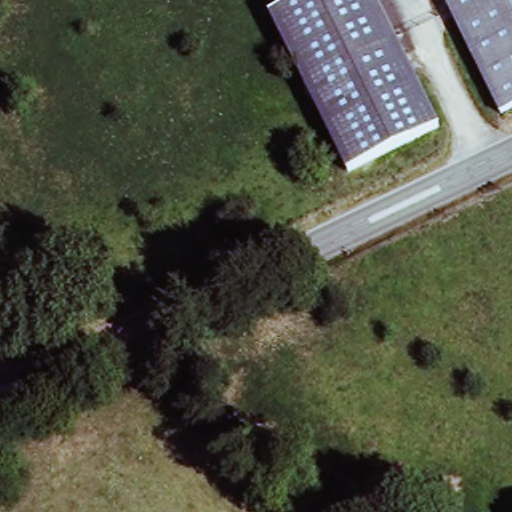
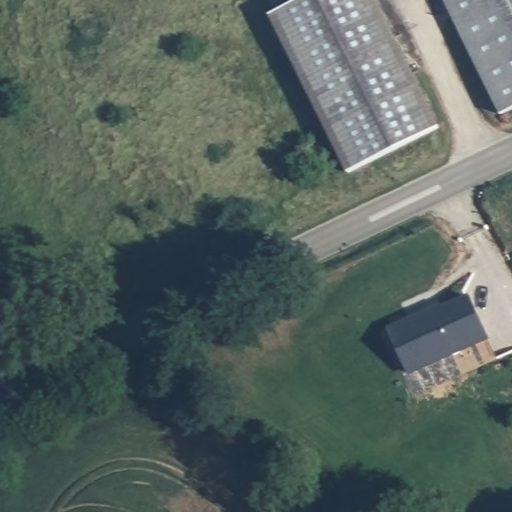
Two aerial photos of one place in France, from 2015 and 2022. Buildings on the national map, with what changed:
unchanged [(378,0),(439,122),(351,170),(273,14),(300,0),(378,0)]
unchanged [(444,0),(492,0),(512,41),(512,108),(499,114),(444,0)]
unchanged [(512,0),(512,41),(492,0),(512,0)]
new [(463,291),(484,338),(401,373),(381,328),(463,291)]

